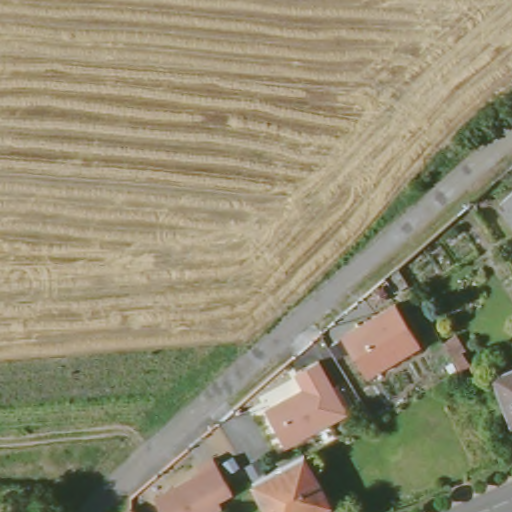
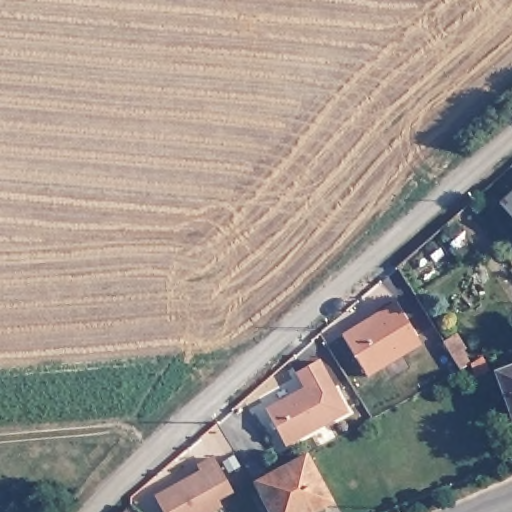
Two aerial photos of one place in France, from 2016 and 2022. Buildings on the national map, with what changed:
unchanged [(512,213),(500,198),(512,188),(512,213)]
unchanged [(422,345),(369,378),(342,337),(397,304),(422,345)]
unchanged [(349,411),(287,442),(269,403),(305,385),(297,368),(322,357),(349,411)]
unchanged [(512,370),(512,418),(496,376),(512,370)]
unchanged [(219,503),(201,512),(164,512),(155,494),(173,483),(171,479),(200,465),(197,459),(216,451),(232,486),(215,496),(219,503)]
unchanged [(332,501),(313,512),(273,512),(255,482),(305,456),(332,501)]
unchanged [(142,512),(131,512),(137,506),(142,512)]

